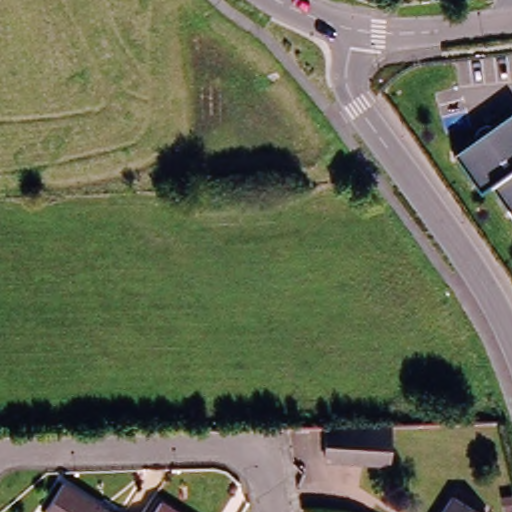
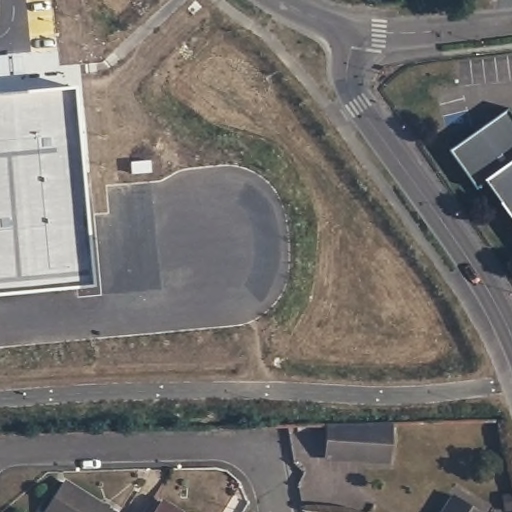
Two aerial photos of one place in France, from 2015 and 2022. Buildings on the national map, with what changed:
new [(92,288),(0,296),(0,95),(74,88),(92,288)]
unchanged [(481,190),(454,151),(510,110),(512,112),(512,213),(490,181),(481,190)]
unchanged [(325,459),(325,422),(390,420),(390,457),(325,459)]
unchanged [(109,512),(44,512),(42,511),(61,481),(109,512)]
unchanged [(469,512),(438,512),(447,498),(469,512)]
unchanged [(179,512),(154,512),(161,501),(179,512)]

